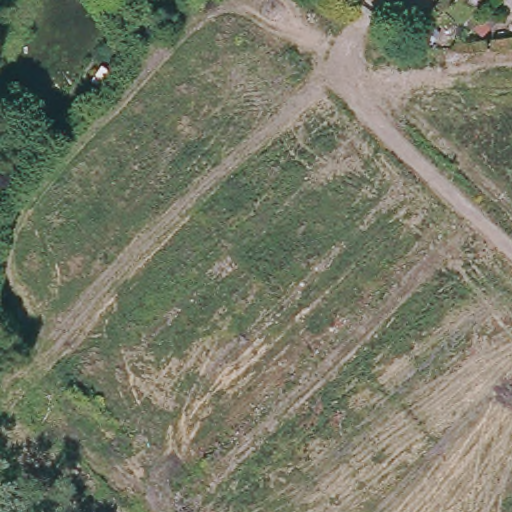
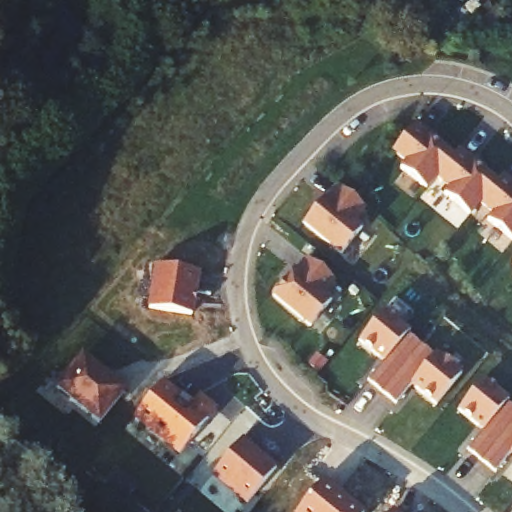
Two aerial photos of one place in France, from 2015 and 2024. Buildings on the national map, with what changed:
unchanged [(85,79),(97,62),(110,69),(96,87),(85,79)]
new [(455,154),(460,149),(497,180),(502,176),(512,185),(512,241),(485,220),(488,215),(480,207),(470,218),(440,195),(445,188),(434,180),(425,189),(398,169),(402,164),(390,154),(416,122),(455,154)]
new [(364,210),(353,223),(361,229),(341,254),(303,223),(324,198),(328,202),(339,188),(364,210)]
new [(335,282),(323,296),(330,301),(310,325),(272,295),(293,270),(297,275),(309,262),(335,282)]
new [(153,266),(200,274),(192,316),(147,308),(153,266)]
new [(409,333),(406,336),(433,360),(437,355),(460,375),(437,404),(413,386),(397,405),(367,382),(383,362),(358,344),(385,312),(409,333)]
new [(58,394),(62,389),(56,386),(82,355),(126,394),(98,427),(58,394)]
new [(507,400),(503,406),(512,413),(512,453),(497,472),(467,450),(483,431),(458,412),(483,382),(507,400)]
new [(192,403),(197,396),(216,412),(179,457),(133,420),(163,383),(192,403)]
demolished [(40,418),(67,392),(147,467),(120,497),(40,418)]
new [(275,467),(245,504),(210,477),(243,438),(275,467)]
new [(363,512),(297,512),(325,480),(363,512)]

